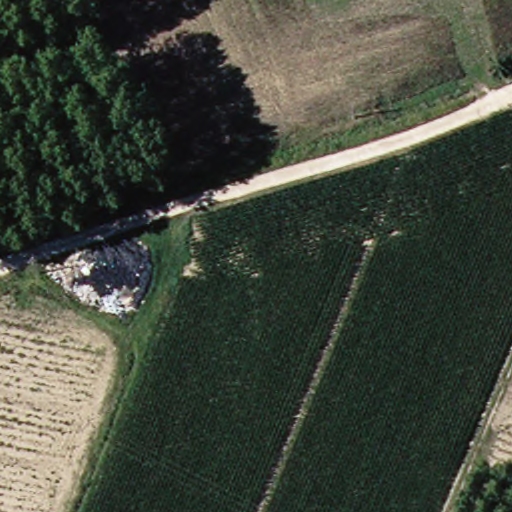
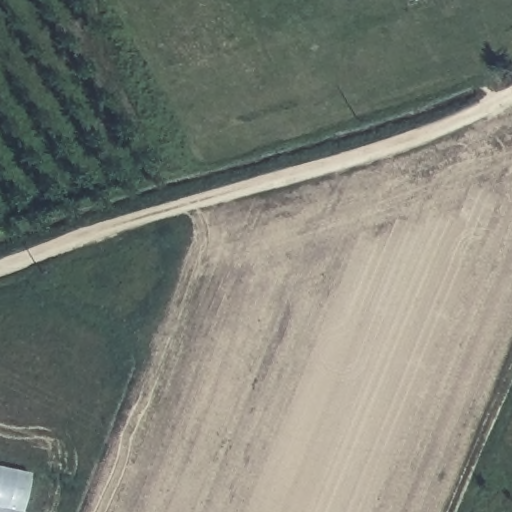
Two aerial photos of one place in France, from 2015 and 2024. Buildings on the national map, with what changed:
new [(21,512),(0,512),(0,470),(29,477),(21,512)]

